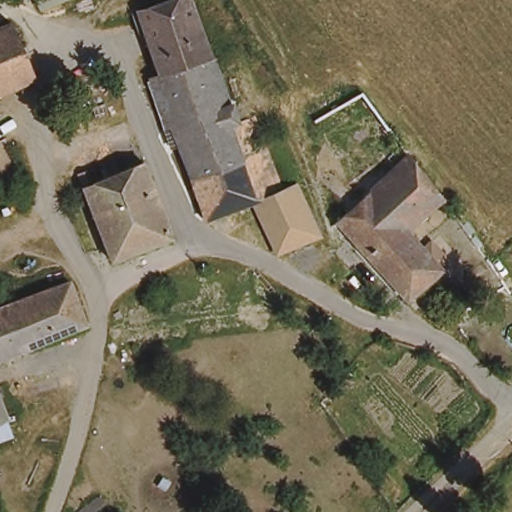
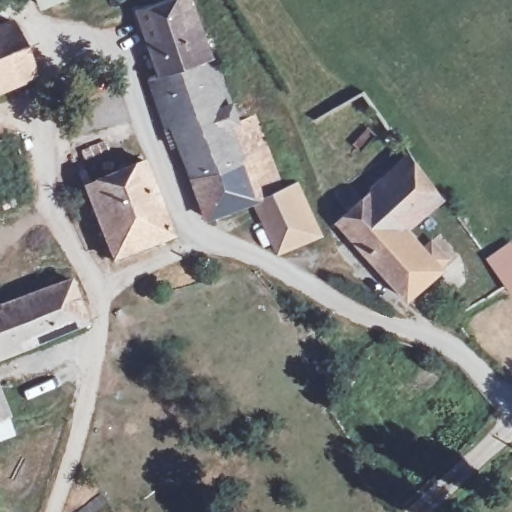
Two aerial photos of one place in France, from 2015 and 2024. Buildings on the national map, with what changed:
unchanged [(54,0),(65,0),(56,4),(54,0)]
unchanged [(191,67),(162,74),(149,35),(140,9),(162,1),(166,0),(191,0),(204,33),(215,61),(199,65),(191,67)]
unchanged [(11,28),(36,82),(0,99),(0,33),(11,28)]
unchanged [(229,100),(240,127),(256,127),(262,127),(271,161),(280,190),(293,184),(304,205),(318,234),(292,246),(279,252),(265,227),(263,224),(250,201),(225,212),(206,219),(196,188),(184,153),(178,135),(176,129),(171,129),(151,76),(158,75),(162,74),(191,67),(199,65),(215,61),(229,100)]
unchanged [(444,198),(410,230),(444,271),(408,300),(341,219),(411,154),(444,198)]
unchanged [(97,218),(86,189),(84,181),(114,170),(140,160),(151,188),(163,223),(168,234),(149,241),(111,256),(97,218)]
new [(512,242),(512,296),(487,258),(512,242)]
unchanged [(72,280),(88,325),(0,360),(0,307),(72,280)]
unchanged [(11,418),(0,423),(0,388),(11,418)]

